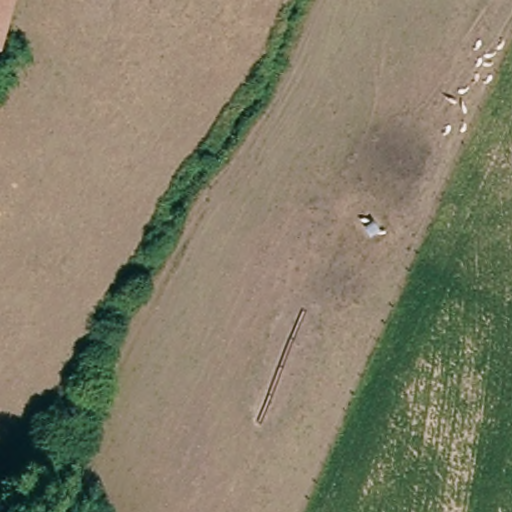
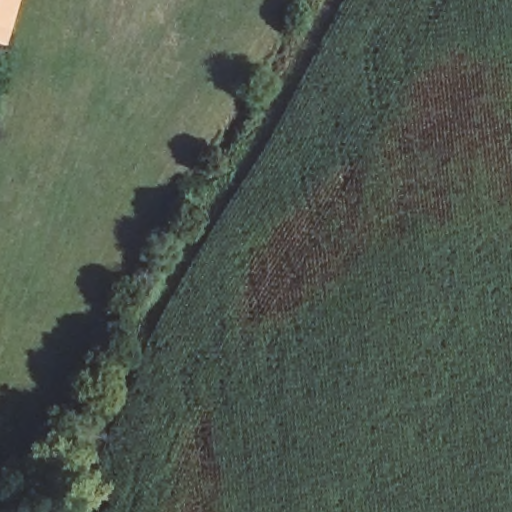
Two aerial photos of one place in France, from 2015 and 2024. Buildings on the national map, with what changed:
unchanged [(0,43),(0,0),(20,0),(7,45),(0,43)]

